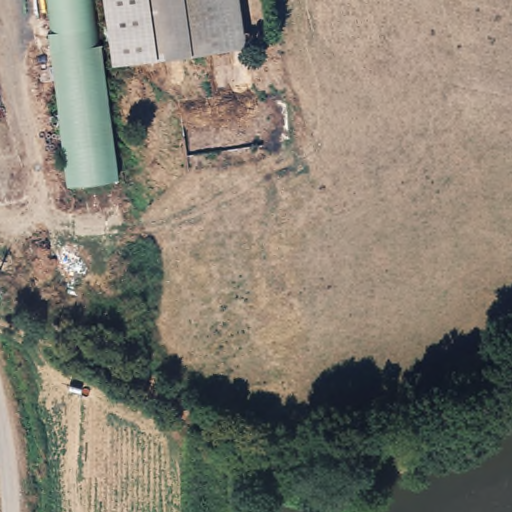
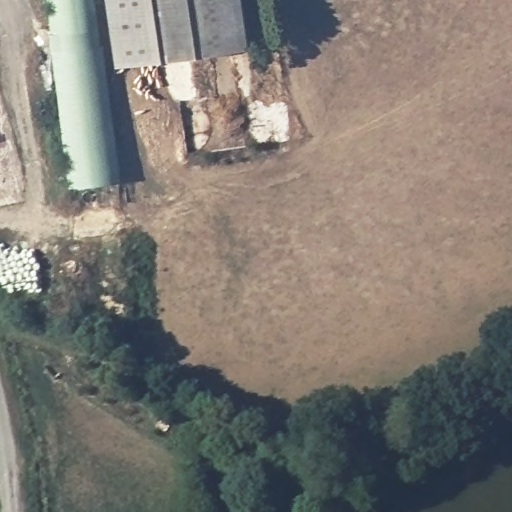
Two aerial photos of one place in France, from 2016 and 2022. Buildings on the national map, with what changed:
unchanged [(68,190),(47,0),(95,0),(115,185),(68,190)]
unchanged [(104,0),(161,0),(161,4),(168,57),(113,64),(104,0)]
unchanged [(168,57),(161,4),(161,0),(236,0),(241,50),(168,57)]

